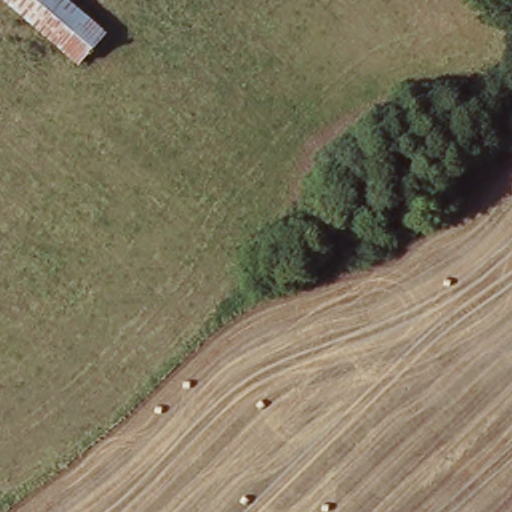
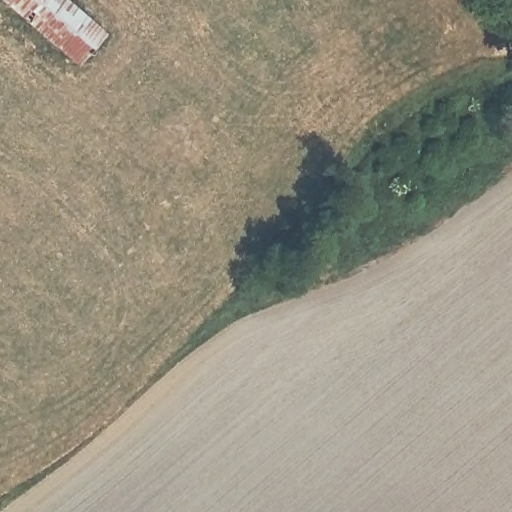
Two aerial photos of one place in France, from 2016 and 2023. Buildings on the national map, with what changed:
unchanged [(72,64),(1,0),(55,0),(98,40),(72,64)]

